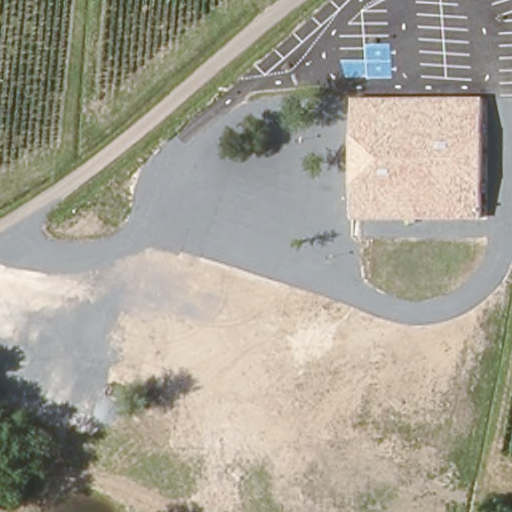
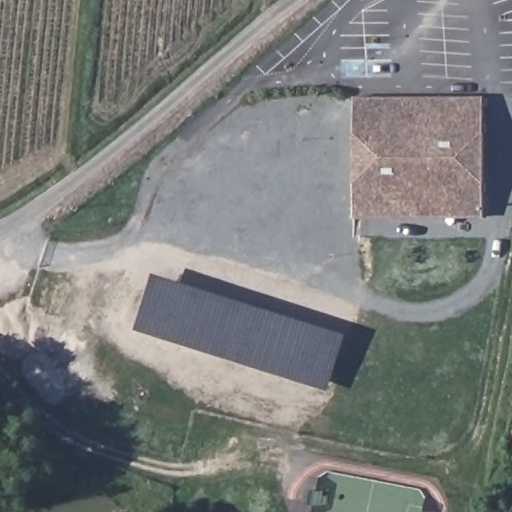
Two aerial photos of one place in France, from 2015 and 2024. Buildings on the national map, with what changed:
unchanged [(483,217),(352,218),(352,97),(482,96),(483,217)]
new [(328,390),(135,329),(153,272),(347,334),(328,390)]

